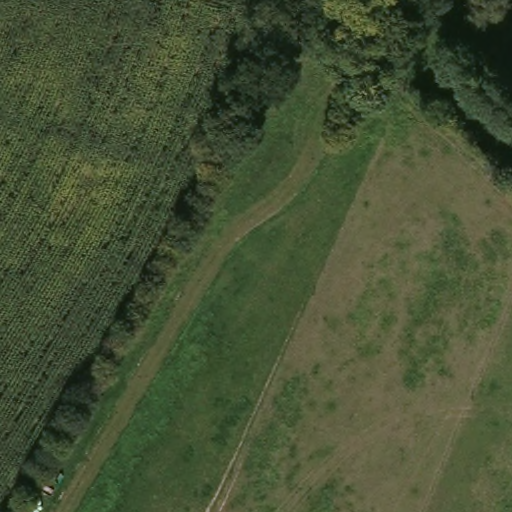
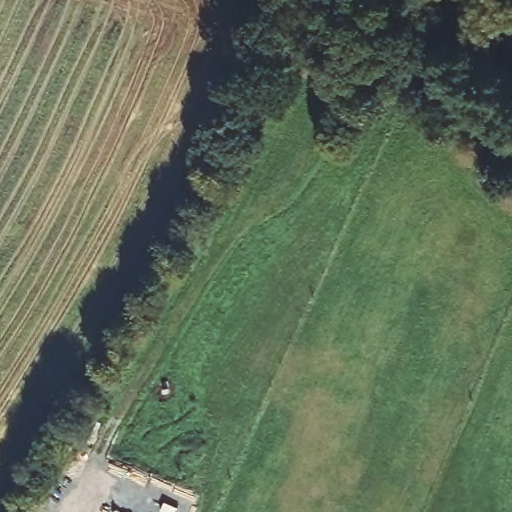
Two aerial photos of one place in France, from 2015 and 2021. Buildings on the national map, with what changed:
[]

